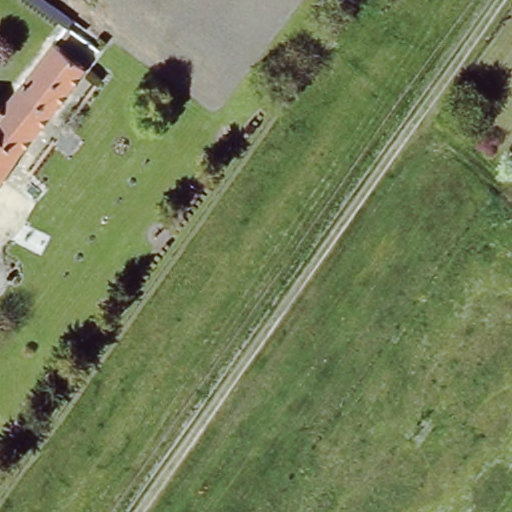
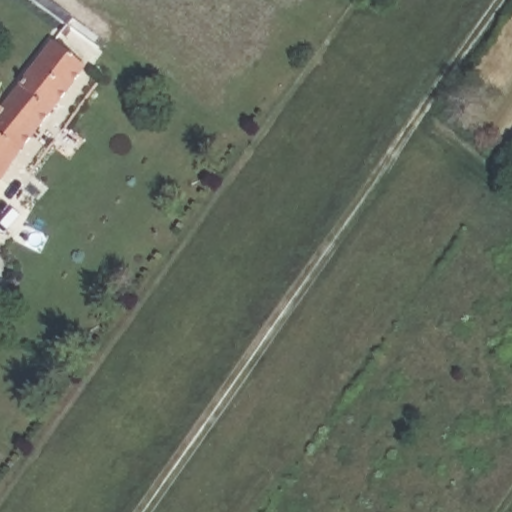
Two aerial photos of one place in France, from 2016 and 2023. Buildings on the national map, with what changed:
unchanged [(23,144),(0,176),(0,106),(2,107),(53,42),(84,66),(23,144)]

